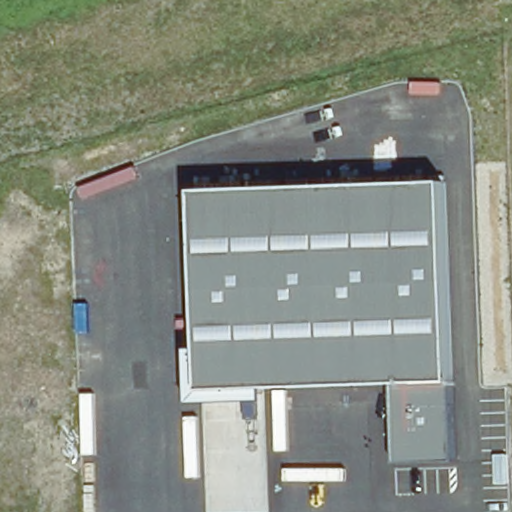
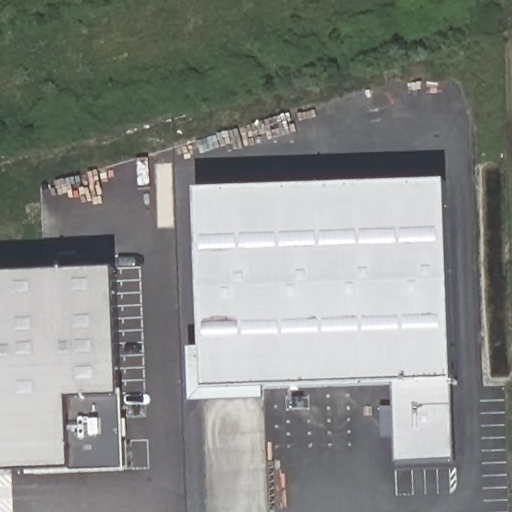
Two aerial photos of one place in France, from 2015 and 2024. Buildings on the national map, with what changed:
unchanged [(456,381),(456,460),(399,462),(398,386),(265,388),(266,401),(194,402),(192,350),(203,350),(199,193),(451,183),(456,381)]
new [(121,398),(126,471),(73,472),(0,475),(0,276),(115,272),(121,398)]

